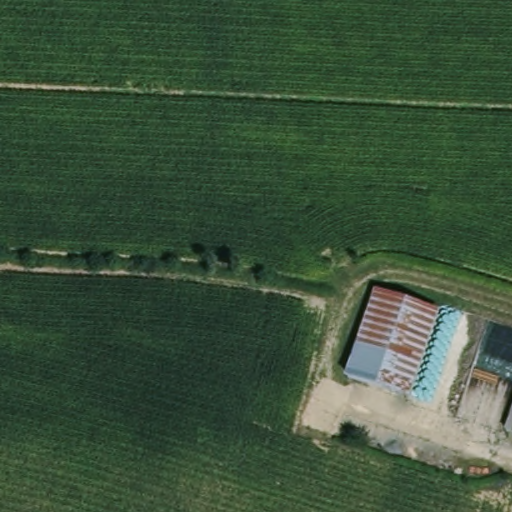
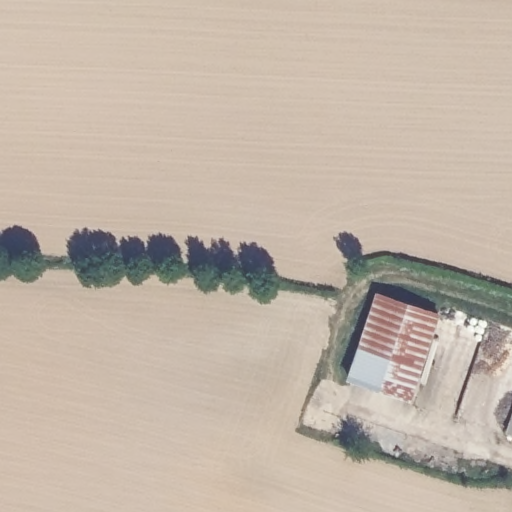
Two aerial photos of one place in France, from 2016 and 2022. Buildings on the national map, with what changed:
unchanged [(441,308),(413,399),(409,398),(351,382),(378,291),(430,305),(441,308)]
unchanged [(512,429),(512,431),(511,431),(512,429)]

